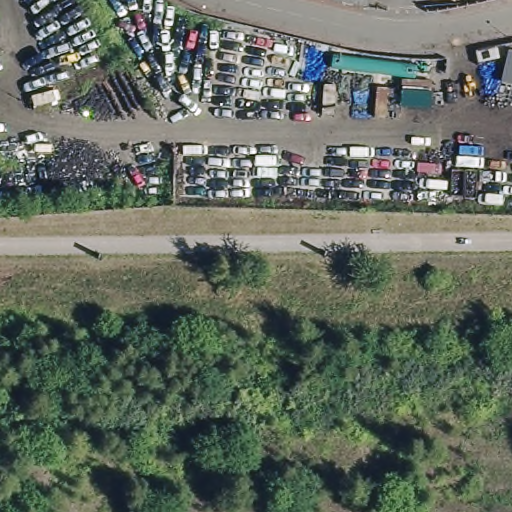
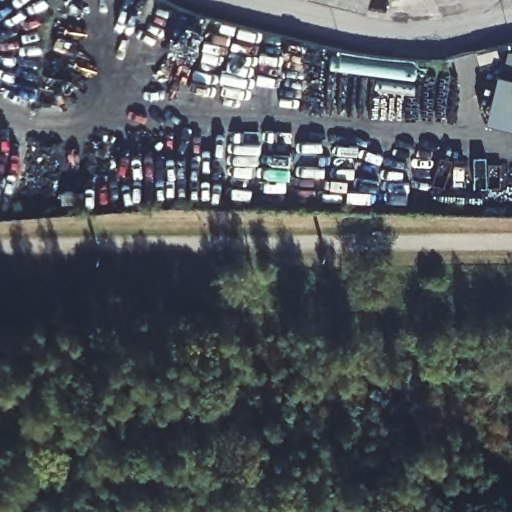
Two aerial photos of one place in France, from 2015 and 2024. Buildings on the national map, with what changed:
unchanged [(364,14),(360,13),(328,5),(310,0),(367,0),(364,14)]
unchanged [(507,50),(512,51),(512,84),(500,80),(507,50)]
new [(500,80),(512,84),(512,123),(488,117),(500,80)]

